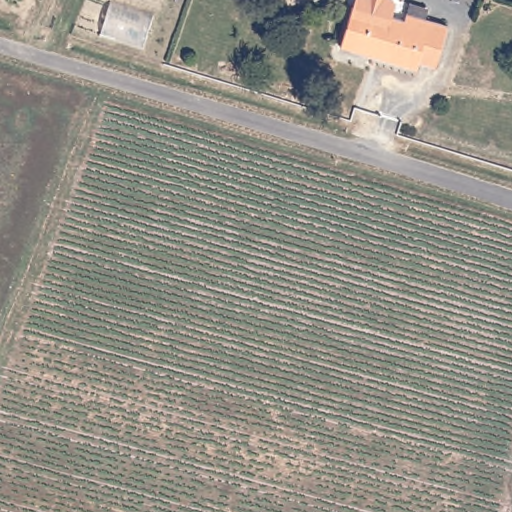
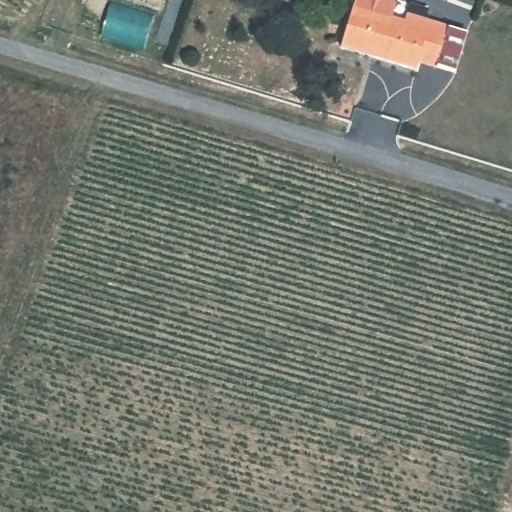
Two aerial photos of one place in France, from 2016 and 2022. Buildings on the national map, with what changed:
unchanged [(396,8),(392,14),(402,17),(405,10),(447,23),(435,64),(419,59),(416,69),(342,45),(357,0),(394,0),(395,1),(396,8)]

